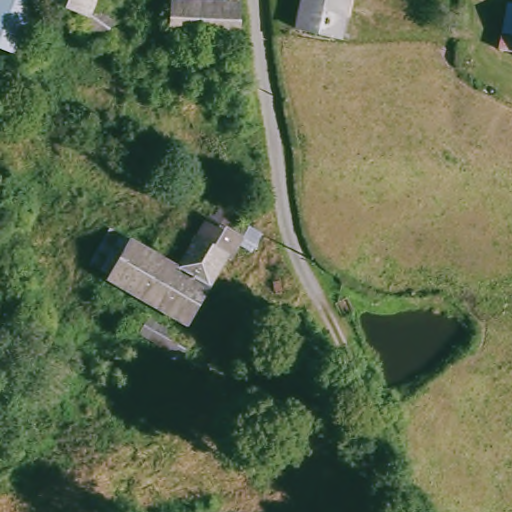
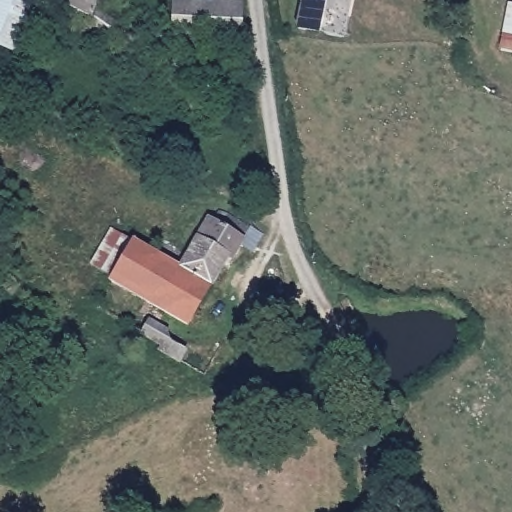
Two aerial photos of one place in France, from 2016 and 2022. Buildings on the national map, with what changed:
unchanged [(0,46),(0,0),(34,0),(14,51),(0,46)]
unchanged [(91,4),(107,23),(93,35),(83,24),(85,12),(50,0),(93,0),(91,4)]
unchanged [(235,40),(165,41),(165,4),(213,4),(213,0),(236,0),(235,40)]
unchanged [(338,32),(285,22),(290,0),(343,0),(338,32)]
unchanged [(497,40),(505,0),(512,0),(512,44),(497,40)]
unchanged [(180,265),(218,201),(248,219),(264,228),(256,244),(241,237),(233,256),(225,252),(187,324),(109,281),(110,278),(130,238),(180,265)]
unchanged [(110,278),(87,266),(108,227),(130,238),(110,278)]
unchanged [(137,338),(147,324),(187,348),(179,363),(137,338)]

